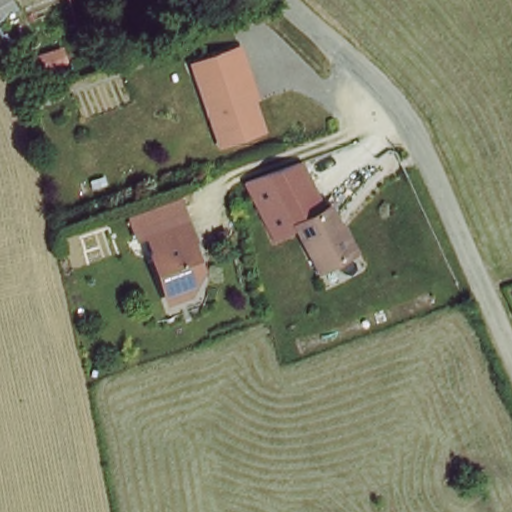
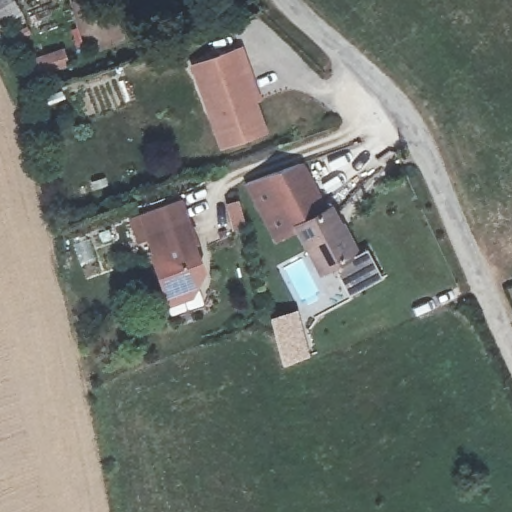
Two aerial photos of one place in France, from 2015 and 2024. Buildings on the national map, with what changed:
unchanged [(0,27),(0,0),(10,0),(18,17),(0,27)]
unchanged [(241,47),(258,98),(253,100),(264,131),(222,146),(193,64),(241,47)]
unchanged [(317,278),(293,232),(272,245),(245,185),(296,157),(322,206),(330,202),(358,255),(317,278)]
unchanged [(197,286),(166,296),(149,239),(190,225),(204,275),(197,286)]
new [(272,317),(296,310),(308,354),(284,363),(272,317)]

